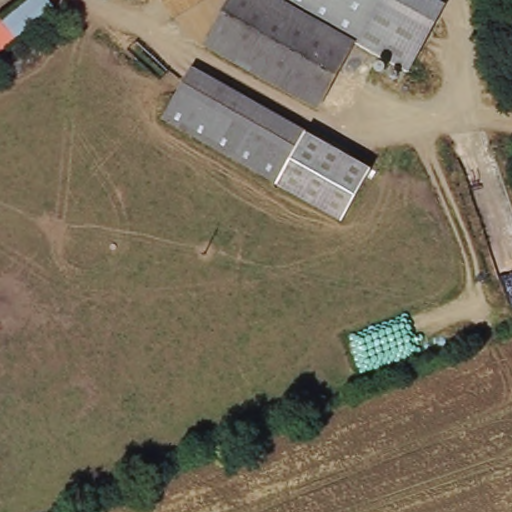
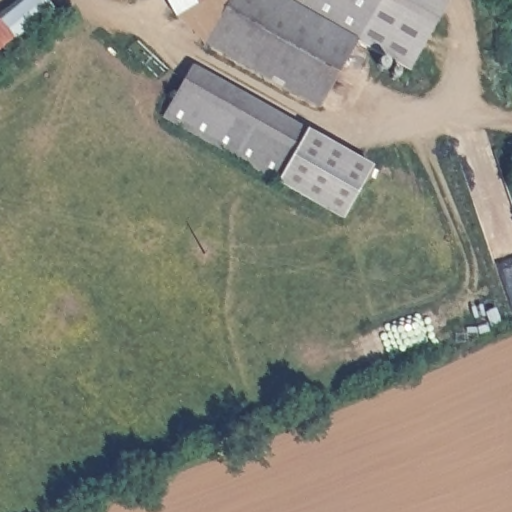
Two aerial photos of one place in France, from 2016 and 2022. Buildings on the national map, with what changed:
unchanged [(58,11),(13,45),(8,39),(0,44),(0,10),(12,0),(49,0),(58,11)]
unchanged [(195,34),(168,9),(164,0),(216,0),(195,34)]
unchanged [(346,34),(306,102),(195,34),(216,0),(367,0),(346,34)]
unchanged [(446,3),(407,70),(357,42),(317,108),(306,102),(346,34),(367,0),(442,0),(446,3)]
unchanged [(161,118),(190,66),(306,131),(371,167),(341,220),(276,183),(161,118)]

